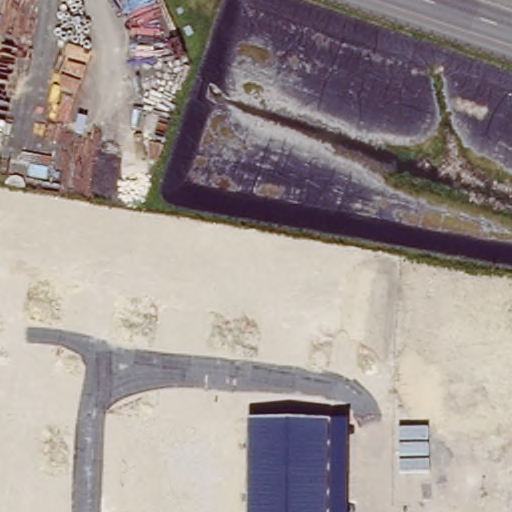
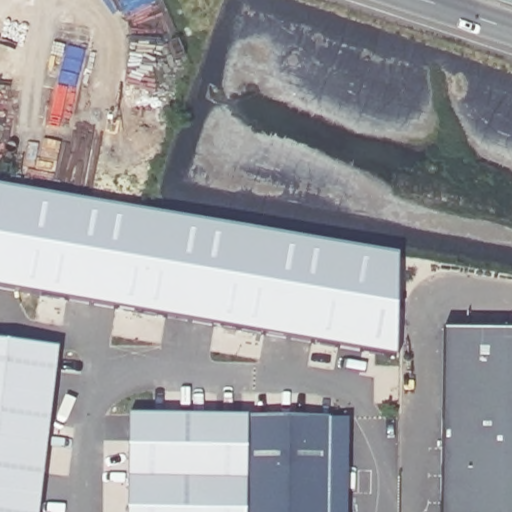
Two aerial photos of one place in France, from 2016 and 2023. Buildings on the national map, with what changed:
new [(396,358),(0,288),(0,185),(398,255),(396,358)]
new [(442,330),(512,331),(512,512),(440,512),(442,330)]
new [(58,347),(38,512),(0,512),(0,341),(58,347)]
demolished [(512,391),(498,389),(498,366),(512,365),(512,391)]
new [(246,431),(245,512),(127,512),(128,417),(246,420),(246,431)]
unchanged [(349,421),(348,512),(245,512),(246,431),(246,420),(349,421)]

